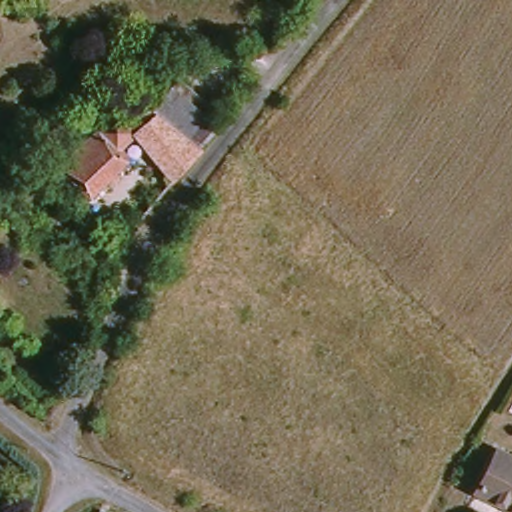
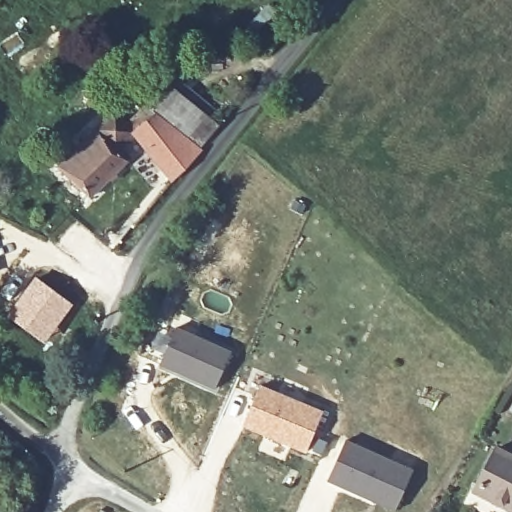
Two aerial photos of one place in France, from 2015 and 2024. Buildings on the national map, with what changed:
unchanged [(176,91),(216,131),(201,148),(160,105),(176,91)]
unchanged [(169,181),(131,139),(153,117),(151,114),(160,105),(201,148),(201,149),(169,181)]
unchanged [(56,168),(114,115),(130,132),(111,151),(122,164),(84,197),(56,168)]
new [(35,277),(71,305),(45,343),(6,317),(35,277)]
new [(173,327),(232,351),(215,392),(157,366),(173,327)]
new [(259,384),(324,411),(314,435),(327,440),(321,455),(307,450),(306,452),(241,427),(259,384)]
new [(345,438),(414,468),(395,512),(326,482),(345,438)]
unchanged [(512,464),(512,512),(496,512),(466,496),(491,452),(512,464)]

